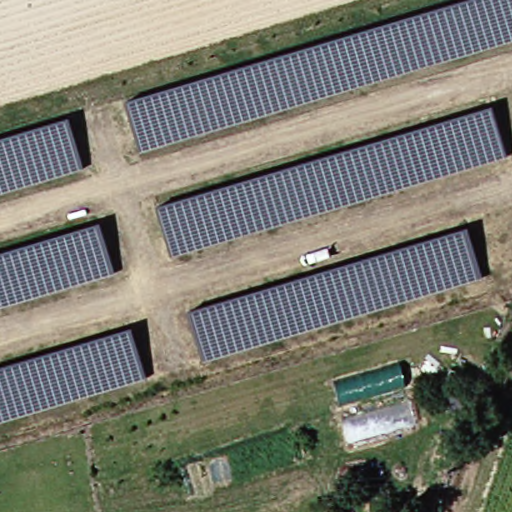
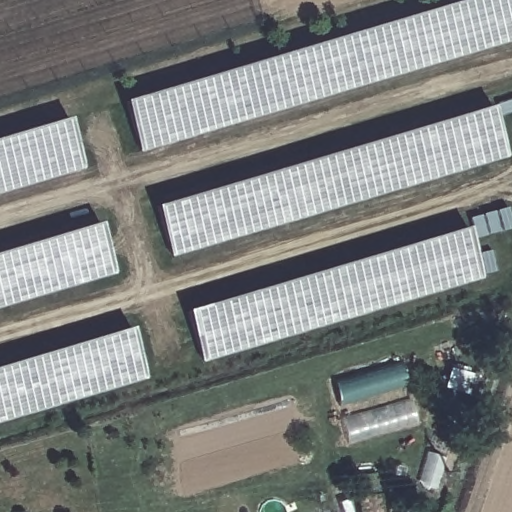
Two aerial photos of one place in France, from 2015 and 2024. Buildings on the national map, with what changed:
unchanged [(125,101),(466,0),(512,0),(512,39),(140,150),(125,101)]
unchanged [(171,255),(156,207),(492,107),(507,155),(171,255)]
unchanged [(0,192),(0,139),(69,118),(84,167),(0,192)]
unchanged [(0,307),(0,255),(106,224),(120,271),(0,307)]
unchanged [(202,360),(188,312),(467,229),(482,276),(202,360)]
unchanged [(0,420),(0,368),(132,328),(147,376),(0,420)]

